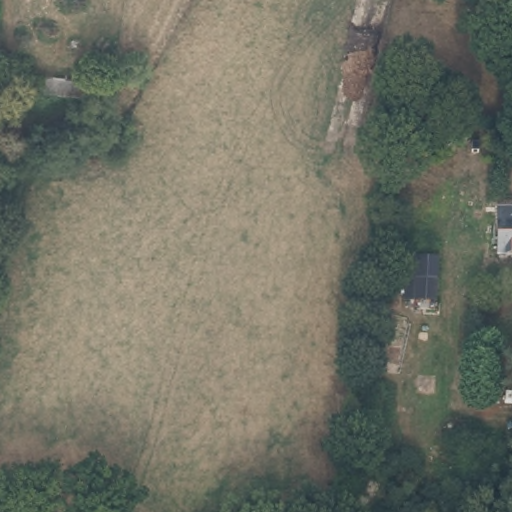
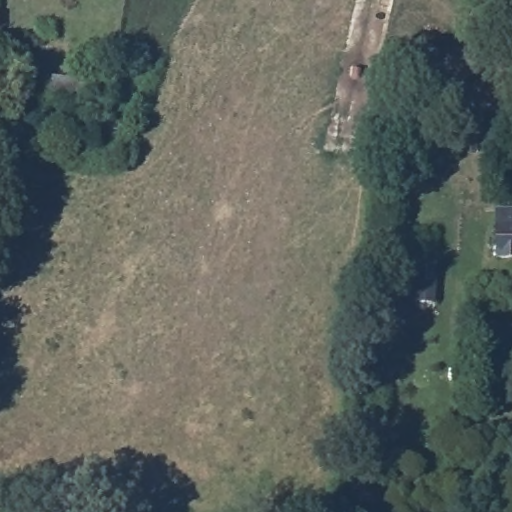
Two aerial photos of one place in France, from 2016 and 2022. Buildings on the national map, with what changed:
unchanged [(80,83),(82,72),(114,76),(110,98),(0,86),(0,76),(0,74),(80,83)]
unchanged [(503,214),(512,214),(512,267),(494,267),(494,229),(503,229),(503,214)]

